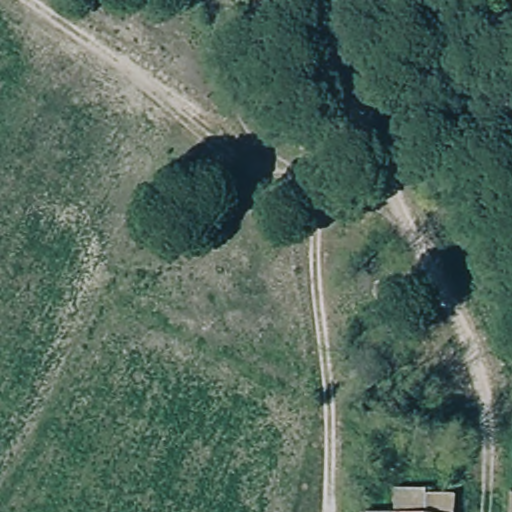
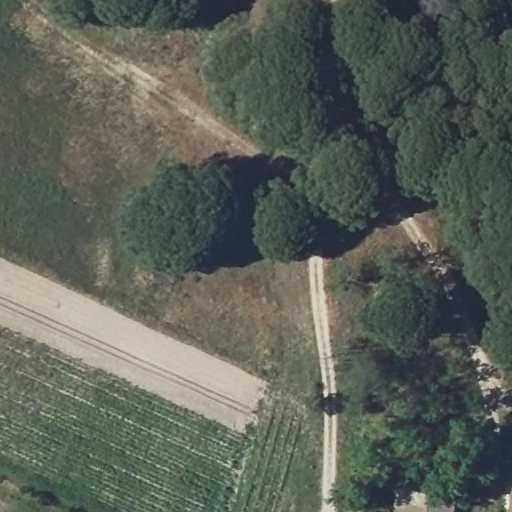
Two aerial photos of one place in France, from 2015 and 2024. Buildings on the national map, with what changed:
unchanged [(394,486),(427,489),(426,512),(371,512),(393,511),(394,486)]
unchanged [(509,512),(511,493),(512,493),(512,512),(509,512)]

